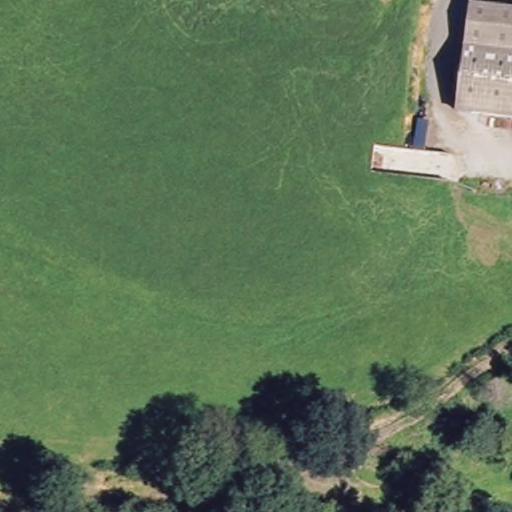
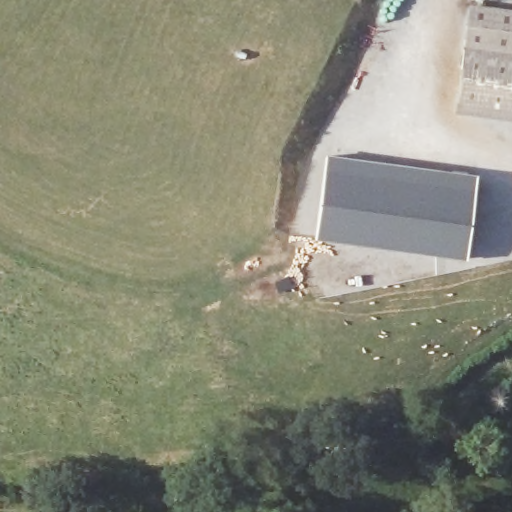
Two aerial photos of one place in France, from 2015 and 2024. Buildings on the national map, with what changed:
unchanged [(512,9),(512,54),(458,47),(466,4),(512,9)]
unchanged [(458,47),(512,54),(512,124),(448,118),(458,47)]
new [(326,157),(477,180),(465,261),(313,238),(326,157)]

